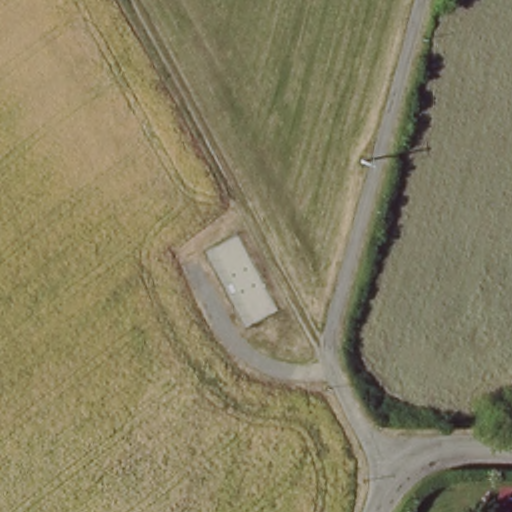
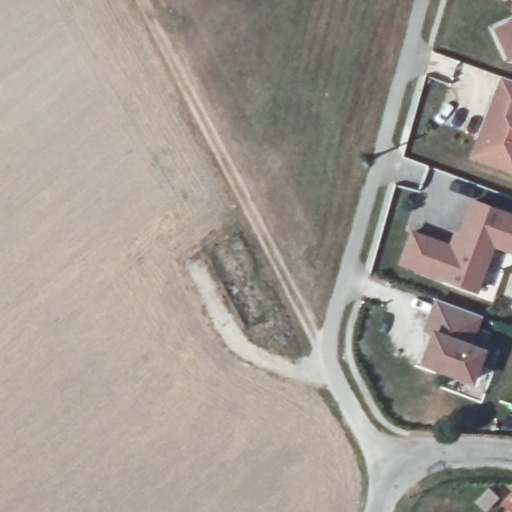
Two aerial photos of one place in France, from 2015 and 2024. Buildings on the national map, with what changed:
new [(512,18),(512,58),(508,60),(494,26),(512,18)]
new [(498,76),(512,80),(512,173),(469,158),(498,76)]
new [(409,230),(449,242),(452,231),(459,234),(471,199),(512,213),(512,254),(494,247),(478,293),(398,263),(409,230)]
new [(434,330),(427,327),(439,297),(481,314),(470,343),(484,349),(472,379),(423,360),(434,330)]

